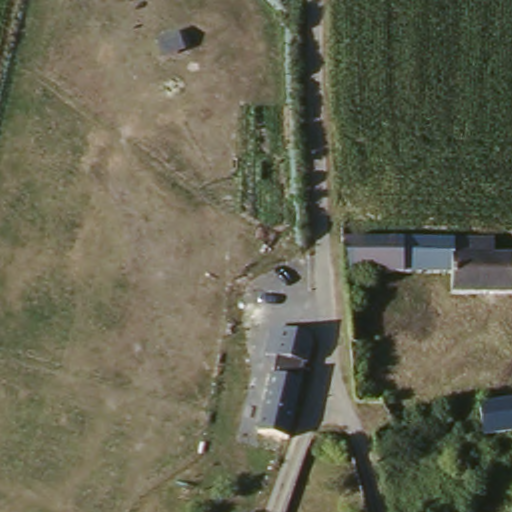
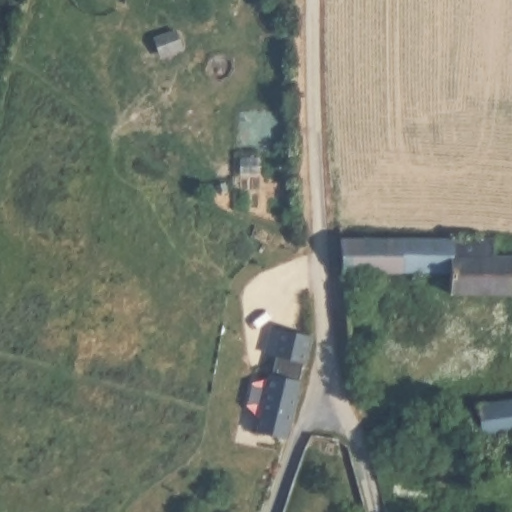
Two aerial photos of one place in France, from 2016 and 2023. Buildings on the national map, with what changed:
unchanged [(447,271),(342,280),(338,239),(456,233),(458,260),(512,257),(512,296),(450,296),(447,271)]
unchanged [(277,358),(266,355),(271,327),(315,336),(307,363),(302,381),(273,374),(277,358)]
unchanged [(260,433),(273,374),(302,381),(287,438),(260,433)]
unchanged [(476,402),(512,397),(512,436),(481,440),(476,402)]

